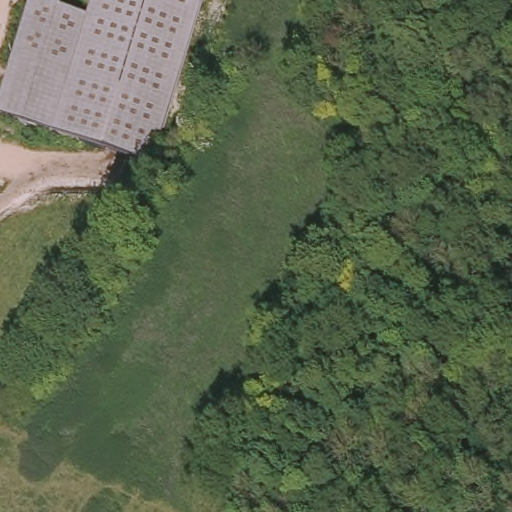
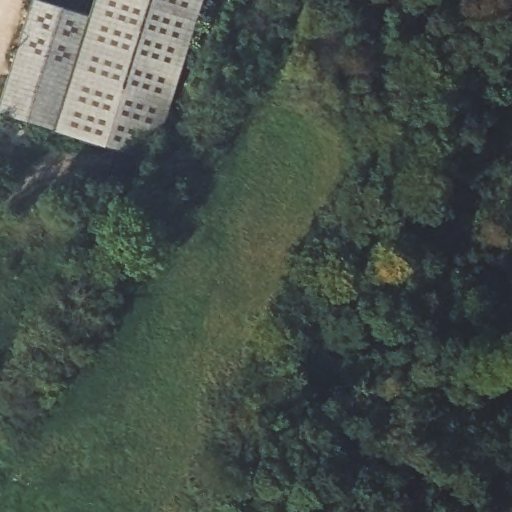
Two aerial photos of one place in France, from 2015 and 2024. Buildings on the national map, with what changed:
unchanged [(155,162),(52,132),(0,117),(0,100),(31,0),(43,0),(89,12),(93,0),(205,0),(155,162)]

